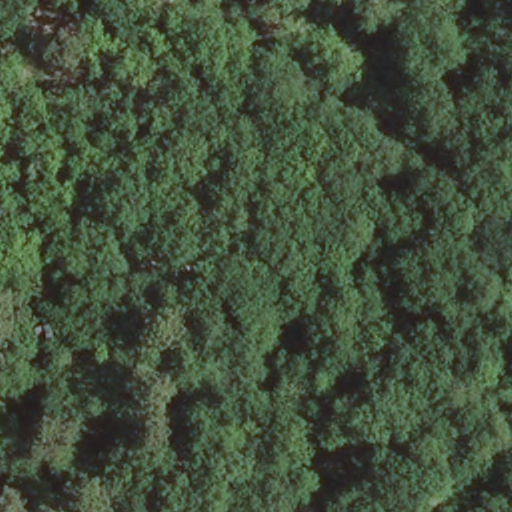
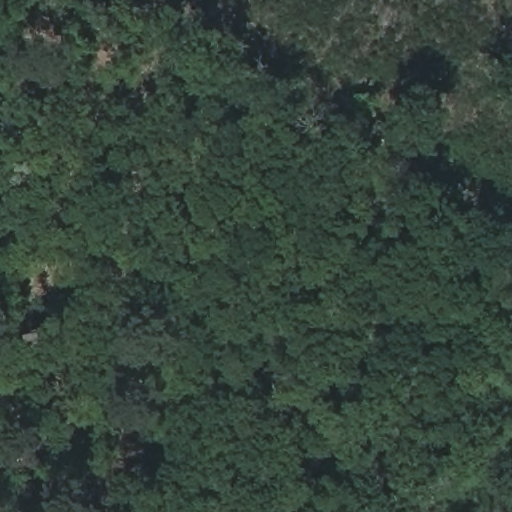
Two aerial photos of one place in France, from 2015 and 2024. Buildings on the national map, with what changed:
[]

